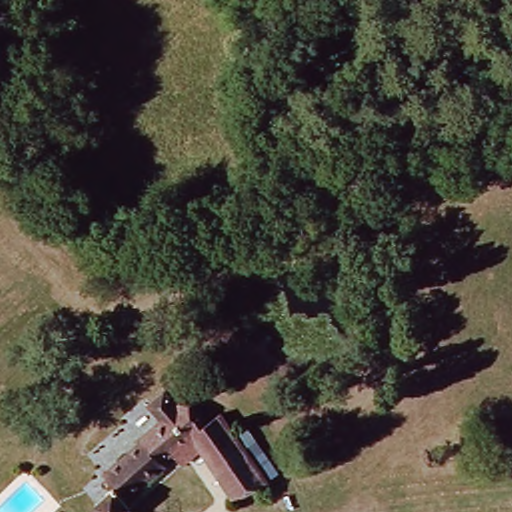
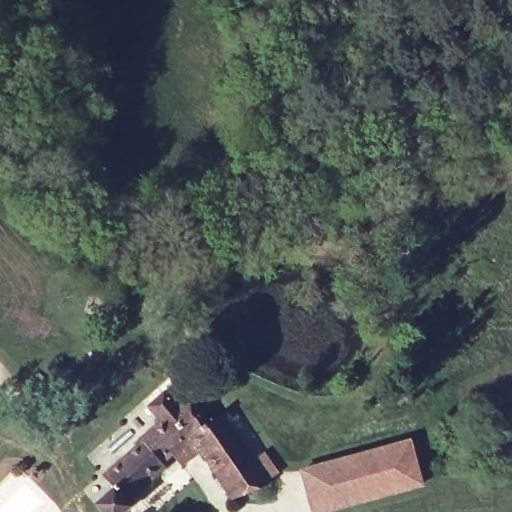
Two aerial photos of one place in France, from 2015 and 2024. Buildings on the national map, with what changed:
unchanged [(111,490),(103,482),(145,445),(140,438),(155,427),(143,410),(166,392),(179,409),(191,400),(212,426),(224,418),(270,486),(257,492),(233,501),(192,444),(169,462),(172,466),(126,507),(122,512),(96,512),(92,507),(111,490)]
new [(410,437),(425,487),(337,512),(311,512),(300,470),(410,437)]
unchanged [(150,510),(148,512),(129,512),(135,501),(150,510)]

